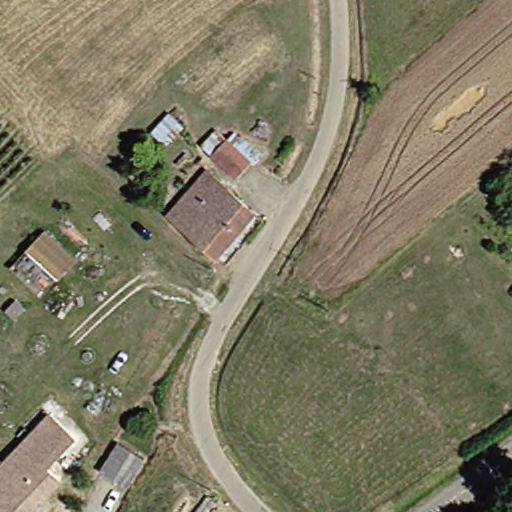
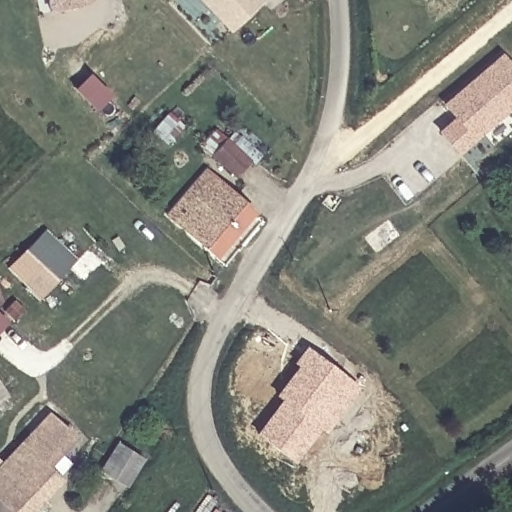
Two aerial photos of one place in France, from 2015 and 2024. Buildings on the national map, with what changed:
new [(40,13),(37,0),(90,0),(91,3),(40,13)]
new [(207,0),(261,0),(233,27),(207,0)]
new [(460,115),(449,101),(506,54),(512,62),(512,105),(460,148),(444,129),(460,115)]
new [(92,75),(112,95),(100,107),(80,87),(92,75)]
unchanged [(160,114),(167,120),(150,140),(143,132),(160,114)]
unchanged [(240,161),(225,177),(192,146),(207,130),(240,161)]
unchanged [(245,215),(207,258),(156,214),(196,170),(245,215)]
unchanged [(56,282),(25,253),(43,234),(74,263),(56,282)]
new [(281,400),(275,395),(298,366),(293,363),(306,346),(359,389),(326,435),(320,430),(293,464),(255,434),(281,400)]
unchanged [(79,420),(50,450),(64,462),(50,476),(35,492),(16,512),(0,512),(0,452),(54,396),(79,420)]
unchanged [(134,453),(135,453),(116,482),(91,466),(109,438),(134,453)]

